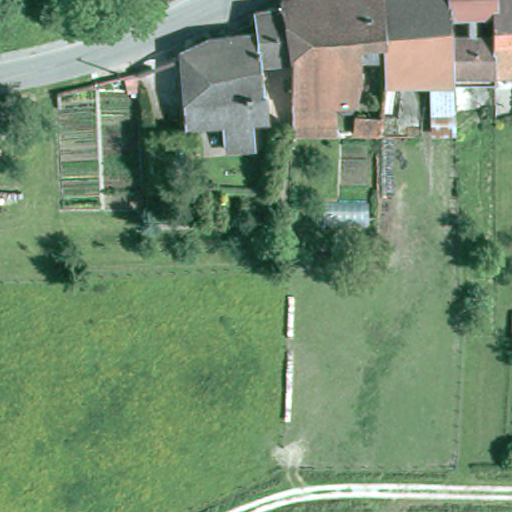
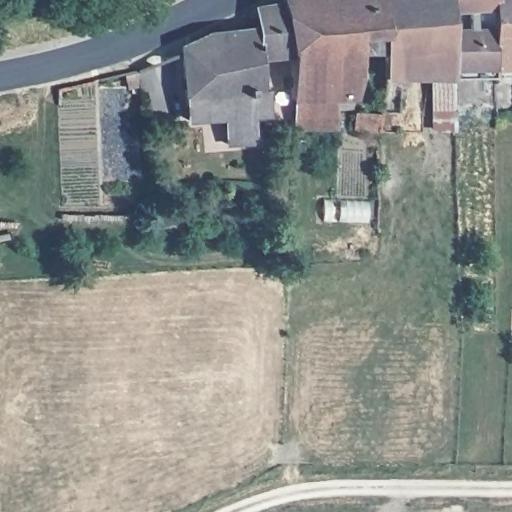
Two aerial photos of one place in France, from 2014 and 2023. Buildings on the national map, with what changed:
unchanged [(365,38),(360,106),(336,107),(335,97),(294,98),(295,81),(295,53),(288,3),(288,0),(386,0),(391,38),(365,38)]
unchanged [(457,76),(426,76),(390,77),(392,58),(391,38),(386,0),(449,0),(457,76)]
unchanged [(457,76),(449,0),(500,0),(500,77),(457,76)]
unchanged [(500,0),(512,0),(512,77),(500,77),(500,0)]
unchanged [(185,63),(185,44),(212,33),(259,28),(257,13),(288,3),(295,53),(263,57),(267,85),(188,93),(185,63)]
unchanged [(428,131),(426,76),(457,76),(458,102),(460,130),(428,131)]
unchanged [(221,117),(190,119),(188,93),(267,85),(270,103),(271,113),(256,114),(260,139),(235,142),(226,143),(221,117)]
unchanged [(335,97),(336,107),(336,132),(293,132),(294,98),(335,97)]
unchanged [(363,112),(385,110),(381,132),(362,132),(363,112)]

